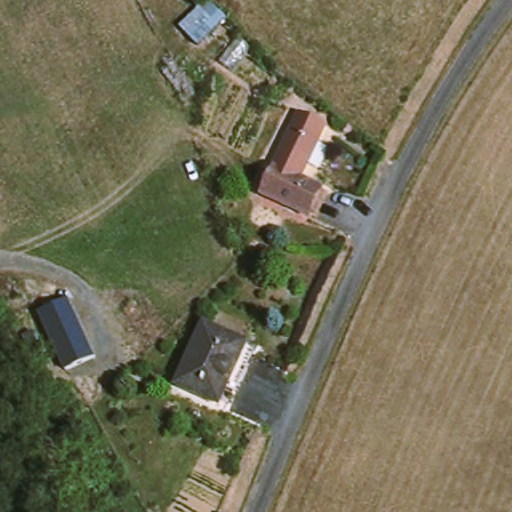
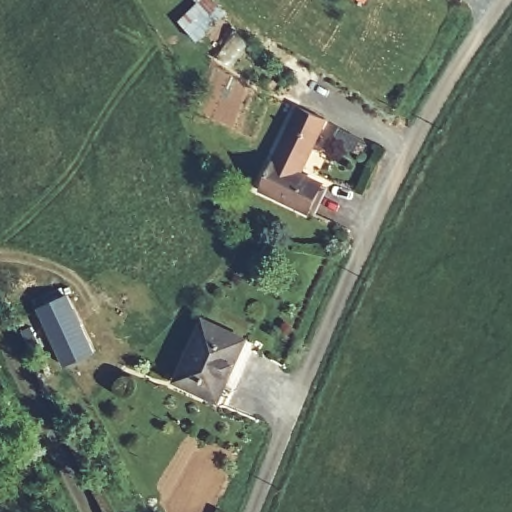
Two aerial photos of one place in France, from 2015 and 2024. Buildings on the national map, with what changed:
unchanged [(316,217),(264,191),(303,114),(329,127),(305,175),(330,188),(316,217)]
unchanged [(99,347),(69,361),(45,309),(75,295),(99,347)]
unchanged [(223,398),(178,380),(204,318),(249,337),(223,398)]

